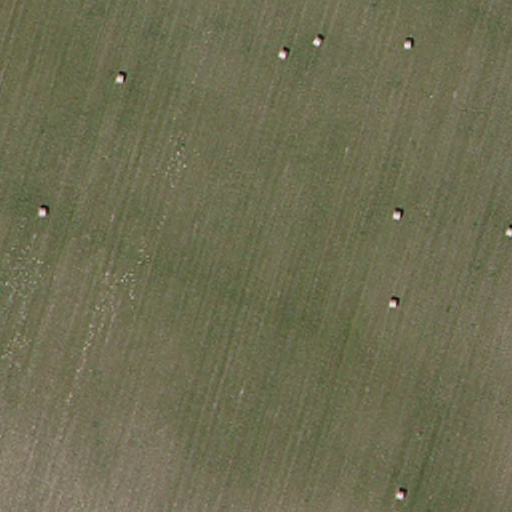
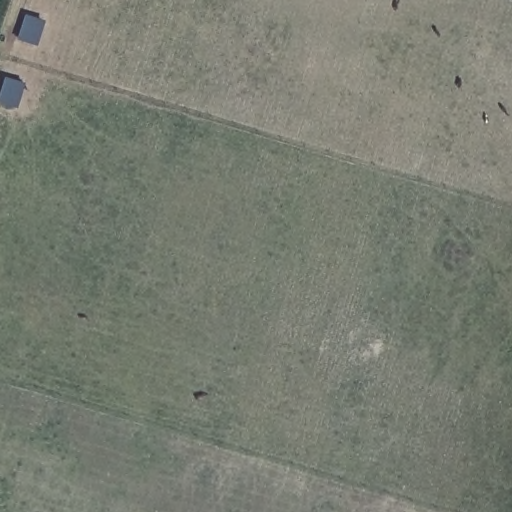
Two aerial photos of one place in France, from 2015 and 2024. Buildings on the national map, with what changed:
[]

